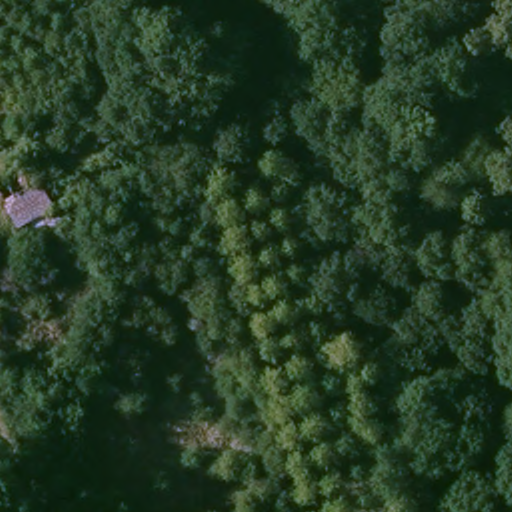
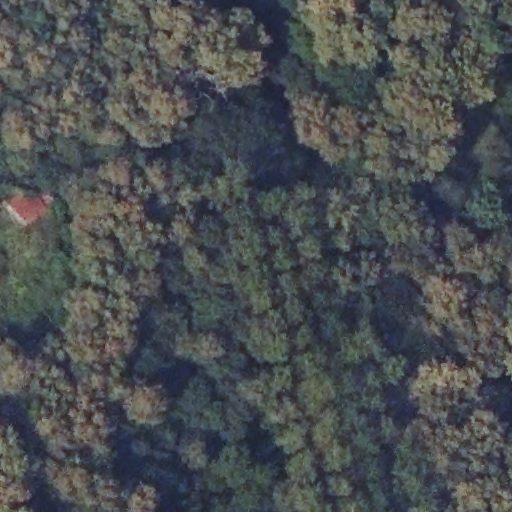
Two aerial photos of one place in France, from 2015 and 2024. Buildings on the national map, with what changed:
unchanged [(21,249),(31,266),(0,283),(0,176),(34,157),(69,219),(21,249)]

